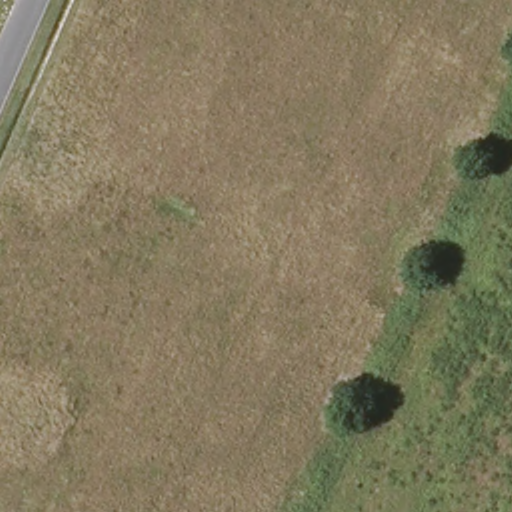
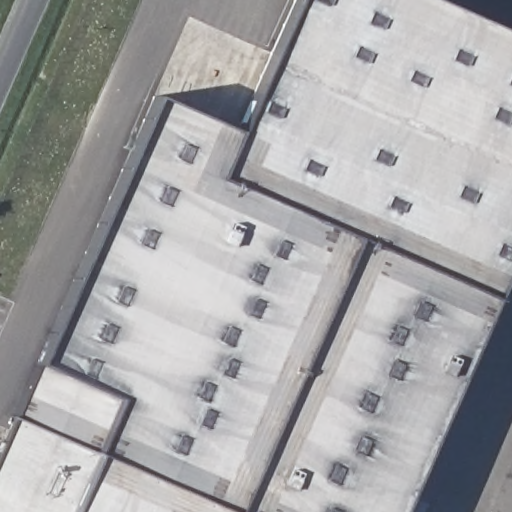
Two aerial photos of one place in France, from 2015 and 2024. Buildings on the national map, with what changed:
new [(512,256),(493,300),(217,178),(237,132),(294,0),(432,0),(512,35),(512,256)]
new [(152,97),(237,132),(217,178),(493,300),(400,512),(225,512),(96,455),(94,454),(117,399),(37,364),(152,97)]
new [(14,417),(37,364),(117,399),(94,454),(14,417)]
new [(14,417),(94,454),(96,455),(71,512),(0,512),(0,450),(14,417)]
new [(96,455),(225,512),(71,512),(96,455)]

